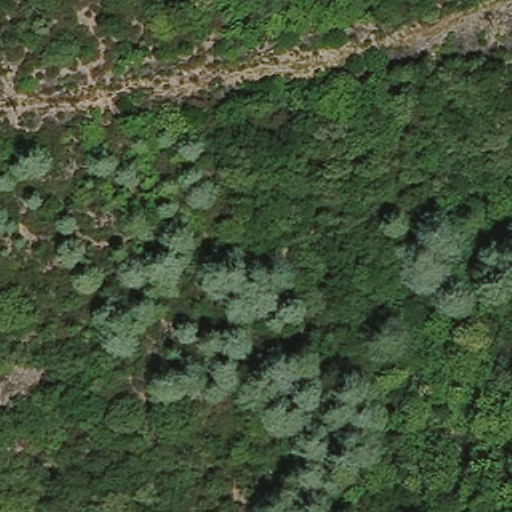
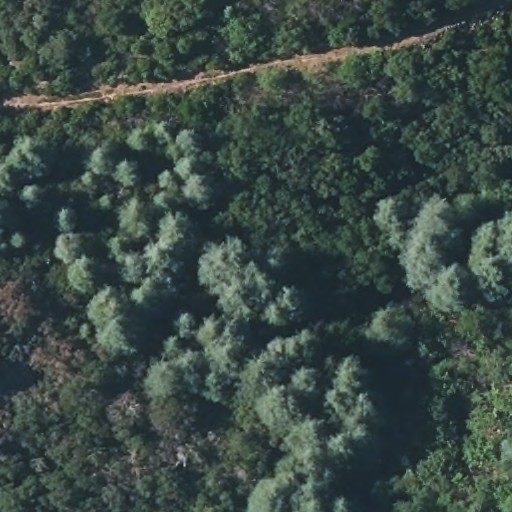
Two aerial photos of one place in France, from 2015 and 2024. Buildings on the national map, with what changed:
[]

